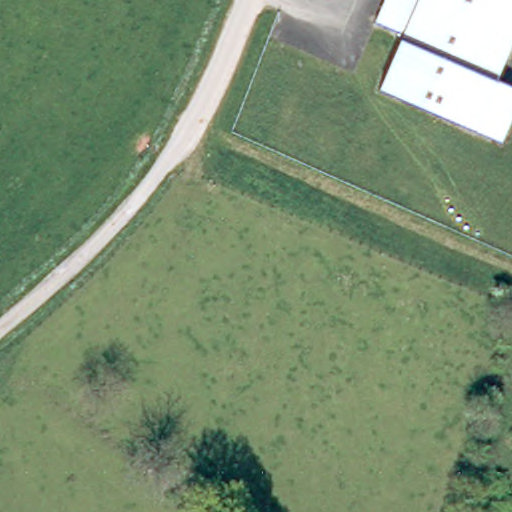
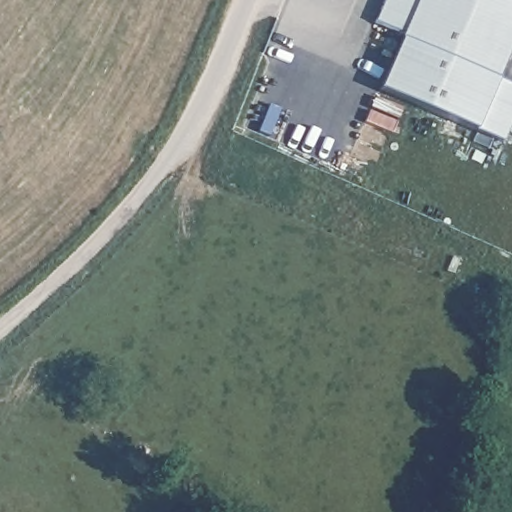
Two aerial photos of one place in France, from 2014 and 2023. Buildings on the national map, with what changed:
unchanged [(512,54),(502,79),(512,83),(512,129),(506,142),(385,91),(408,35),(381,23),(391,0),(512,0),(512,54)]

